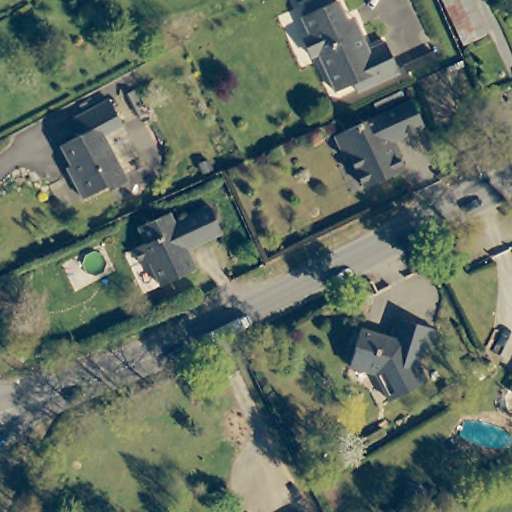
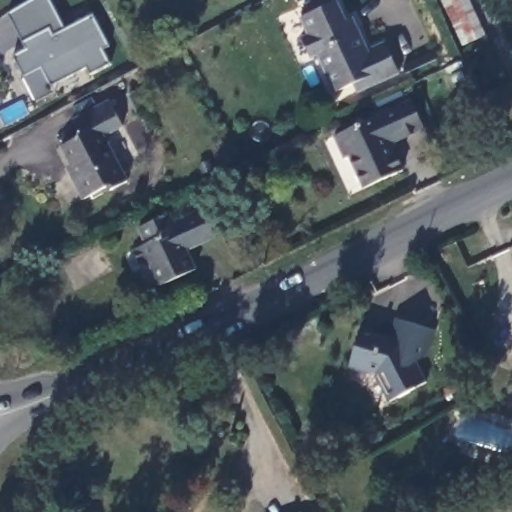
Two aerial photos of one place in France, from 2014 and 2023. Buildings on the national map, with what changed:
new [(94,15),(110,46),(102,49),(110,63),(91,74),(87,67),(54,86),(57,91),(39,102),(15,56),(27,50),(9,14),(32,0),(51,0),(67,29),(94,15)]
unchanged [(304,39),(310,36),(302,17),(309,14),(306,6),(320,0),(327,0),(330,6),(339,2),(347,22),(355,19),(357,27),(368,52),(383,47),(397,77),(356,95),(352,86),(334,94),(319,57),(312,60),(304,39)]
unchanged [(460,44),(441,0),(470,0),(485,36),(460,44)]
unchanged [(413,98),(425,126),(388,142),(393,152),(397,150),(405,168),(366,186),(352,154),(346,157),(335,132),(413,98)]
unchanged [(72,167),(62,147),(82,137),(74,121),(110,102),(123,127),(105,137),(128,181),(110,191),(107,187),(84,200),(74,181),(67,170),(72,167)]
unchanged [(143,244),(137,227),(167,214),(171,222),(207,206),(220,234),(193,246),(190,239),(181,244),(192,270),(156,286),(146,264),(137,262),(131,250),(143,244)]
unchanged [(390,336),(397,316),(433,328),(424,356),(414,361),(423,381),(387,400),(372,372),(347,362),(360,326),(390,336)]

